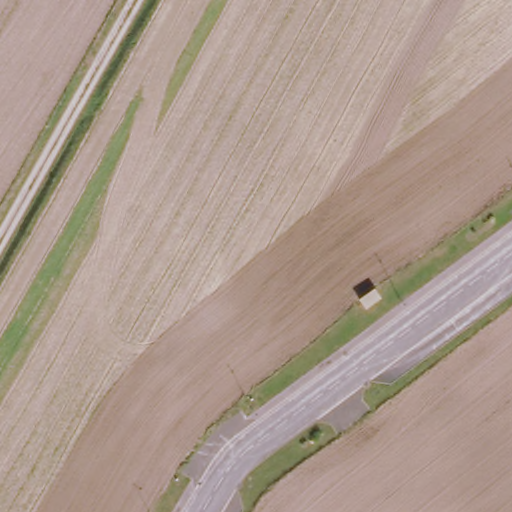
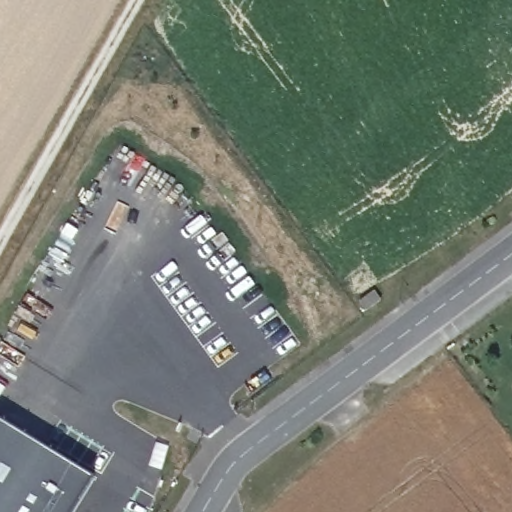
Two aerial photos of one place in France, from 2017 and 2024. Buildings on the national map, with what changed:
unchanged [(360,301),(375,290),(381,299),(366,310),(360,301)]
new [(73,512),(0,512),(0,408),(97,472),(73,512)]

